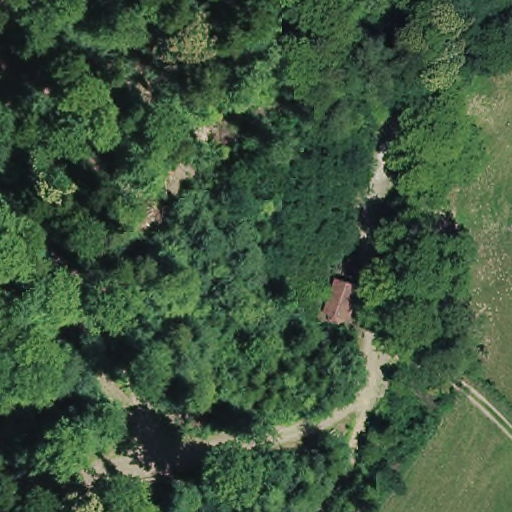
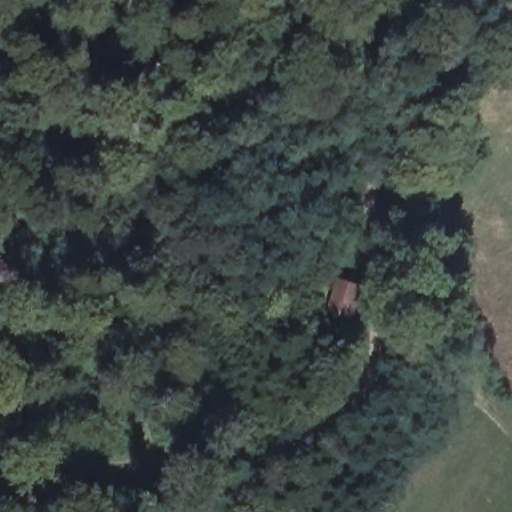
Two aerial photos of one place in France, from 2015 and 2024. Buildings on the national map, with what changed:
unchanged [(350,313),(347,315),(344,315),(340,314),(338,311),(337,308),(331,304),(344,272),(367,280),(355,312),(352,311),(350,313)]

